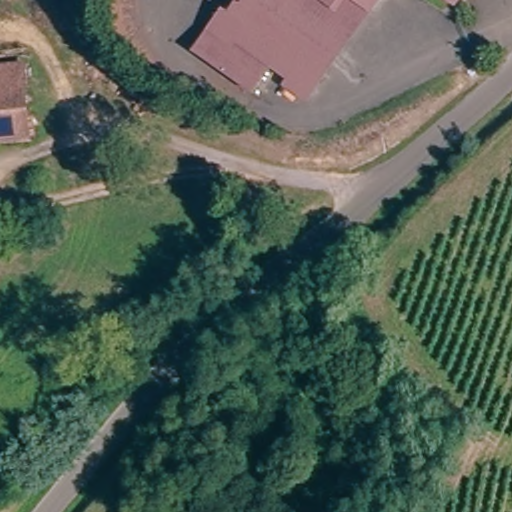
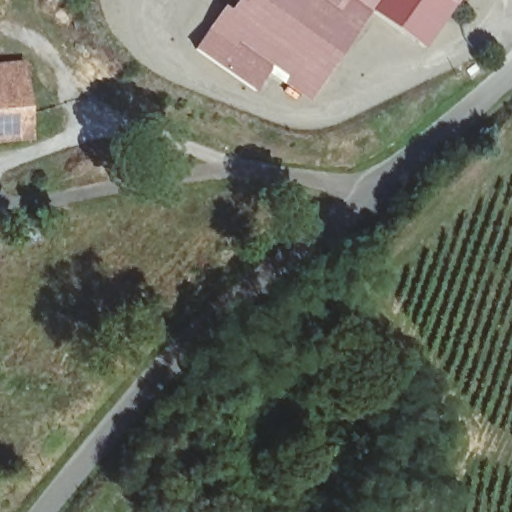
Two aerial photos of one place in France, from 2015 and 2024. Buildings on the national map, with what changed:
unchanged [(255,91),(194,51),(220,9),(230,14),(239,0),(378,0),(311,99),(268,72),(255,91)]
new [(451,0),(454,2),(455,4),(423,48),(370,11),(378,0),(451,0)]
unchanged [(455,0),(454,2),(451,0),(455,0)]
unchanged [(31,137),(0,141),(0,60),(24,59),(31,137)]

